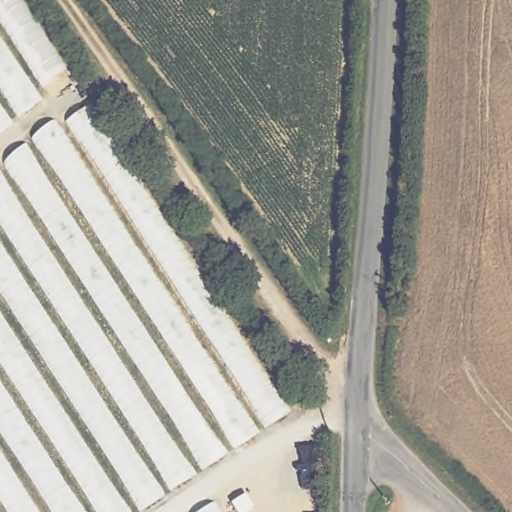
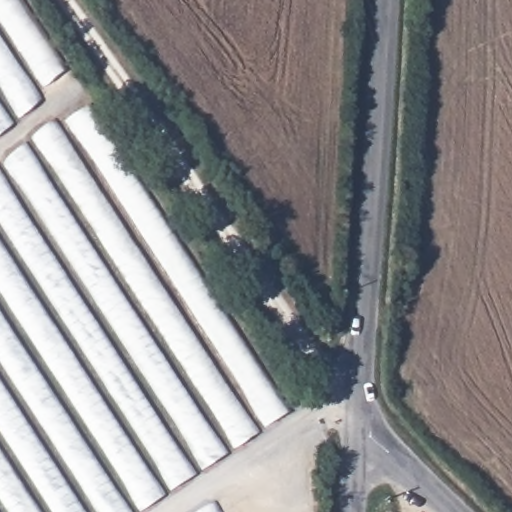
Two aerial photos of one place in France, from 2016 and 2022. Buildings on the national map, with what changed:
unchanged [(77,68),(0,131),(0,0),(30,0),(77,68)]
unchanged [(92,99),(297,405),(137,512),(0,512),(0,158),(53,114),(92,99)]
unchanged [(220,512),(195,512),(213,500),(220,512)]

